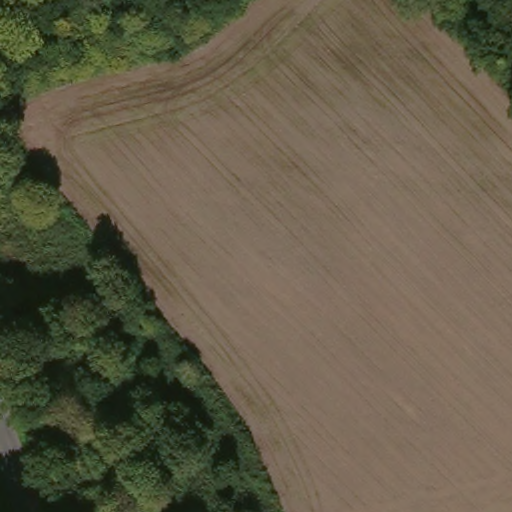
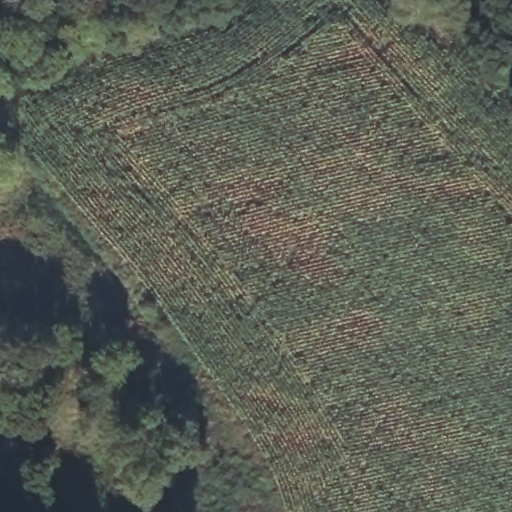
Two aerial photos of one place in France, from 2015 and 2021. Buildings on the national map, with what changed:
[]

